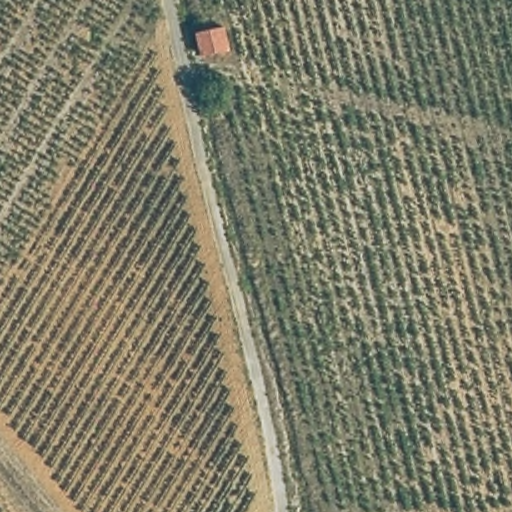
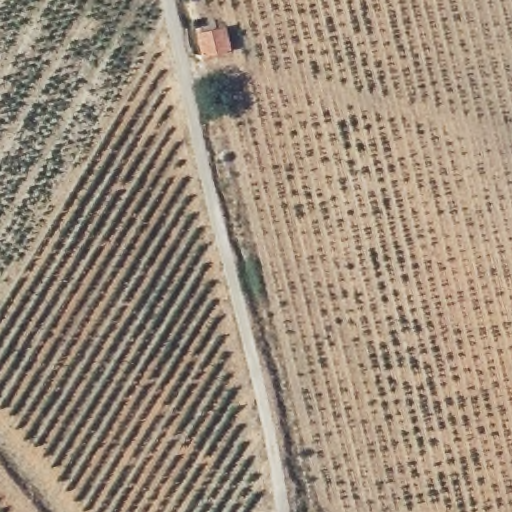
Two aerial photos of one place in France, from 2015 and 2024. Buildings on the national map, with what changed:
unchanged [(230,48),(199,56),(190,32),(223,23),(230,48)]

